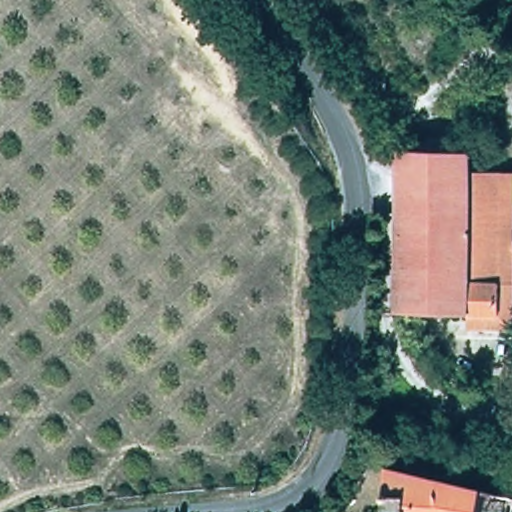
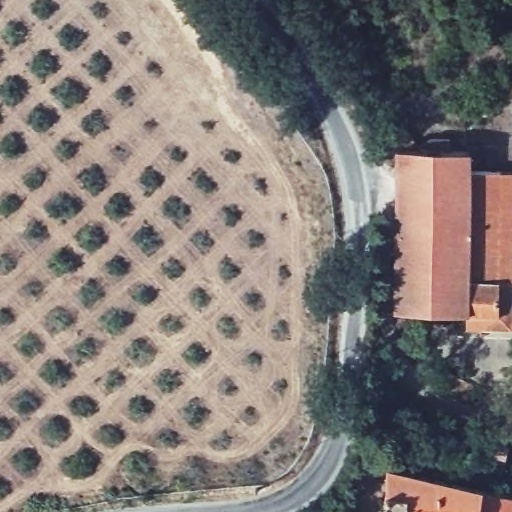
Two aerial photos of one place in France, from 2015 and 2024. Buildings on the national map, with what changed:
unchanged [(386,150),(468,150),(467,161),(511,167),(510,326),(386,312),(386,150)]
unchanged [(380,512),(382,462),(512,495),(512,512),(380,512)]

